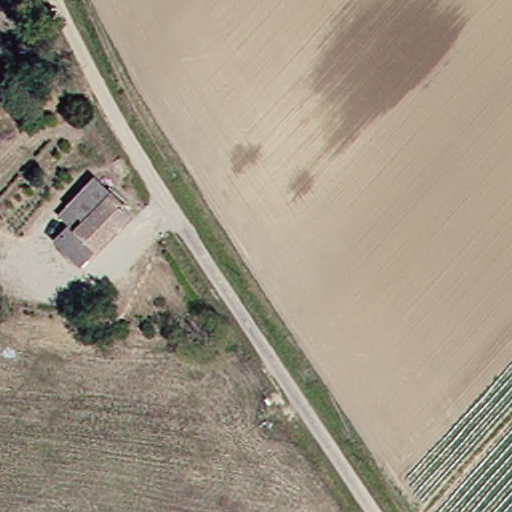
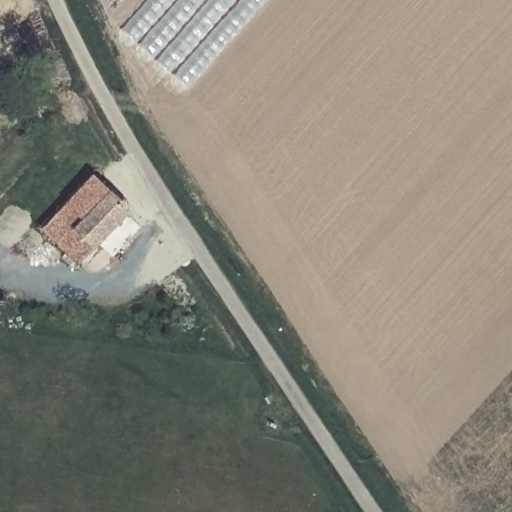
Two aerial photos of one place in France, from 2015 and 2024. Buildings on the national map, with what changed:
new [(123,30),(149,0),(269,0),(189,89),(123,30)]
unchanged [(59,209),(85,179),(120,215),(87,250),(69,234),(51,217),(59,209)]

